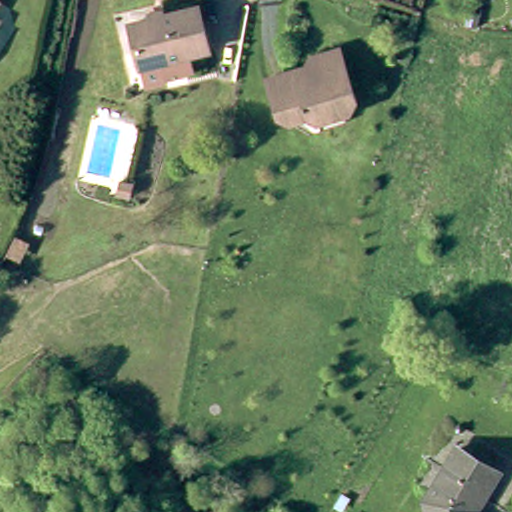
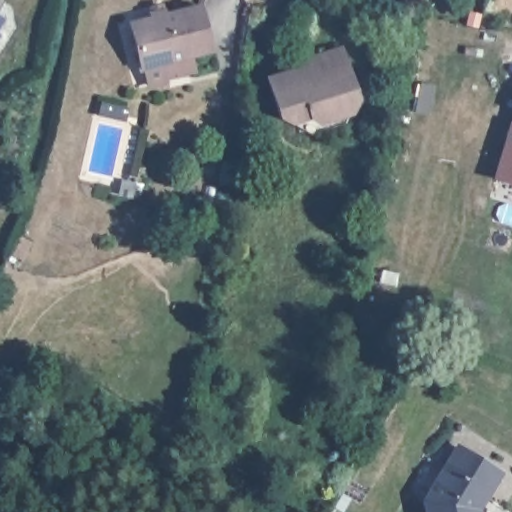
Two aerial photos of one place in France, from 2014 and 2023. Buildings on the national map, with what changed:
unchanged [(2,0),(3,1),(0,6),(0,0),(2,0)]
unchanged [(151,90),(146,71),(136,28),(155,23),(154,17),(168,14),(169,20),(204,11),(216,54),(166,66),(171,84),(151,90)]
unchanged [(6,22),(0,33),(0,17),(6,22)]
unchanged [(4,37),(0,43),(0,34),(4,37)]
unchanged [(309,132),(289,117),(281,111),(271,72),(294,66),(301,70),(311,67),(310,63),(314,54),(342,47),(356,101),(353,109),(347,122),(309,132)]
new [(512,120),(512,184),(492,178),(511,120),(512,120)]
unchanged [(127,194),(114,191),(118,179),(130,182),(127,194)]
unchanged [(431,500),(464,447),(504,473),(481,508),(482,512),(433,512),(431,500)]

